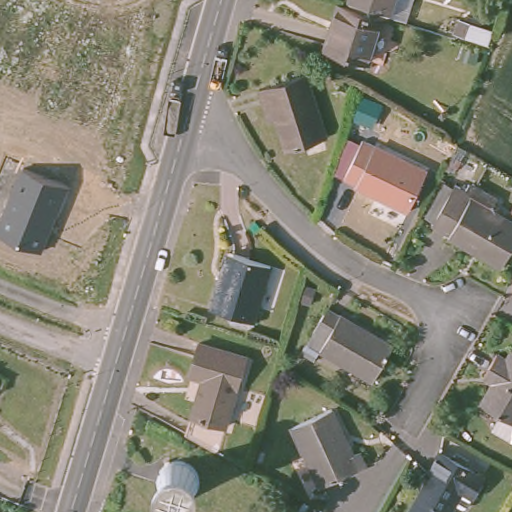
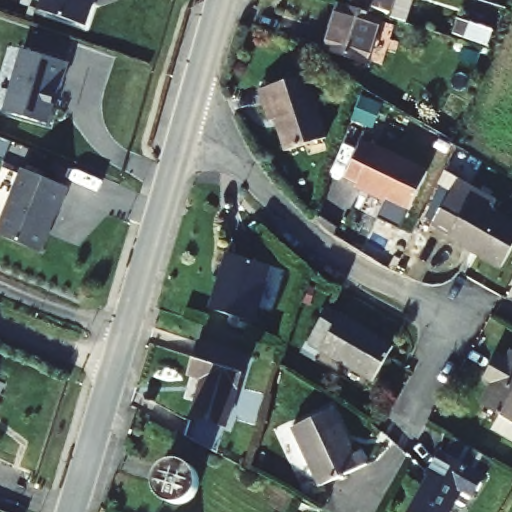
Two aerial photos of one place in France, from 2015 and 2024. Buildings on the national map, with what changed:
new [(91,0),(90,3),(92,7),(85,26),(40,10),(43,0),(91,0)]
unchanged [(377,22),(345,12),(349,0),(390,0),(382,23),(377,22)]
unchanged [(331,29),(337,9),(345,12),(377,22),(363,67),(326,56),(335,30),(331,29)]
unchanged [(470,22),(492,31),(488,45),(465,37),(470,22)]
new [(23,50),(68,63),(60,90),(57,89),(47,125),(5,112),(23,50)]
unchanged [(287,151),(277,120),(270,121),(260,90),(306,75),(327,138),(287,151)]
unchanged [(375,147),(380,137),(390,142),(387,146),(427,165),(404,212),(351,187),(339,180),(360,139),(375,147)]
unchanged [(69,186),(42,252),(0,235),(0,219),(21,167),(69,186)]
unchanged [(512,232),(512,247),(497,272),(427,232),(450,191),(461,197),(465,191),(492,207),(485,217),(512,232)]
unchanged [(244,317),(201,303),(210,273),(216,276),(224,249),(225,250),(261,261),(244,317)]
unchanged [(374,381),(308,342),(328,308),(394,346),(374,381)]
unchanged [(199,378),(185,375),(194,343),(241,356),(214,454),(182,437),(199,378)]
unchanged [(512,446),(487,430),(494,417),(472,405),(485,382),(475,377),(487,355),(497,360),(504,350),(512,355),(512,446)]
unchanged [(351,452),(357,465),(310,486),(283,427),(322,408),(344,455),(351,452)]
unchanged [(426,480),(424,478),(435,457),(479,481),(468,499),(462,510),(457,511),(451,508),(450,507),(447,512),(408,512),(426,480)]

